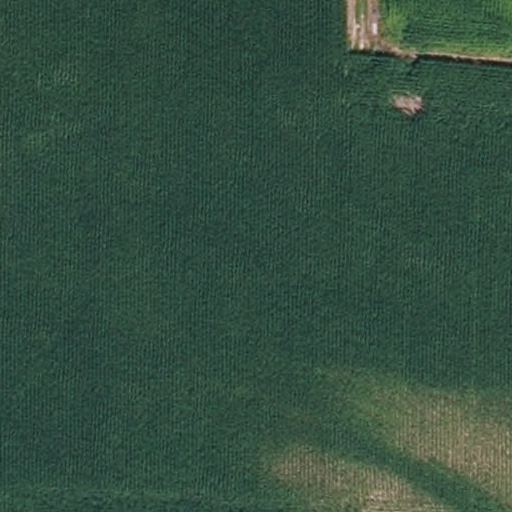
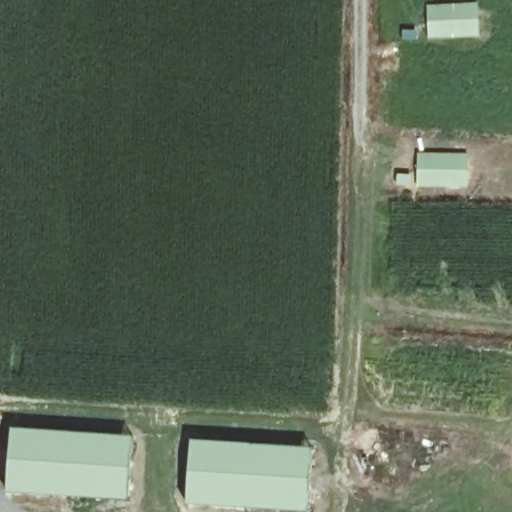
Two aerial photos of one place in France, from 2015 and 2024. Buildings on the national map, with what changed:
new [(477,1),(480,37),(427,39),(426,4),(477,1)]
new [(396,172),(412,174),(412,180),(415,180),(417,151),(467,152),(467,187),(395,184),(396,172)]
new [(11,426),(133,436),(129,500),(5,492),(11,426)]
new [(191,438),(313,447),(307,512),(185,504),(191,438)]

